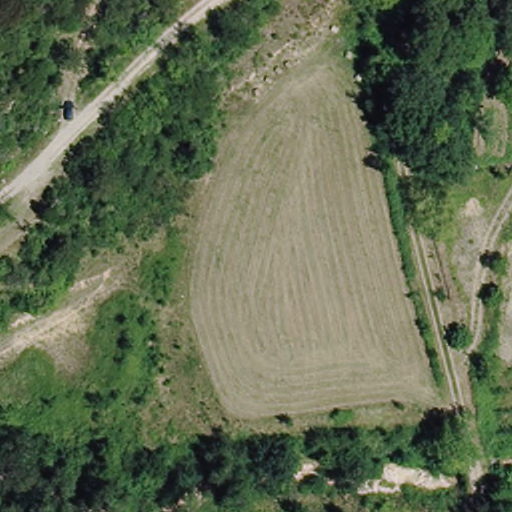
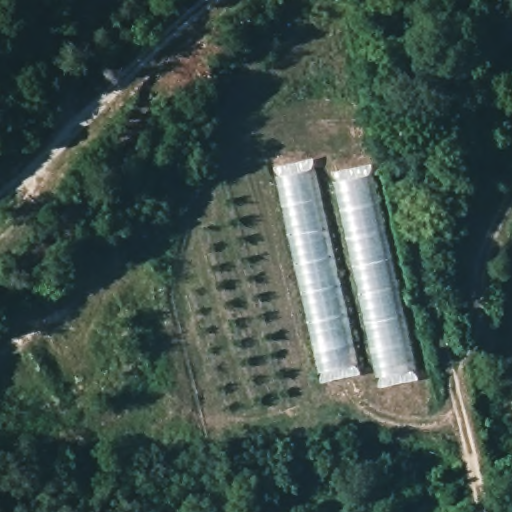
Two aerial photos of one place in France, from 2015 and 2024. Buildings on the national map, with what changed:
new [(355,364),(318,372),(276,177),(310,168),(355,364)]
new [(371,174),(414,370),(376,378),(334,182),(371,174)]

